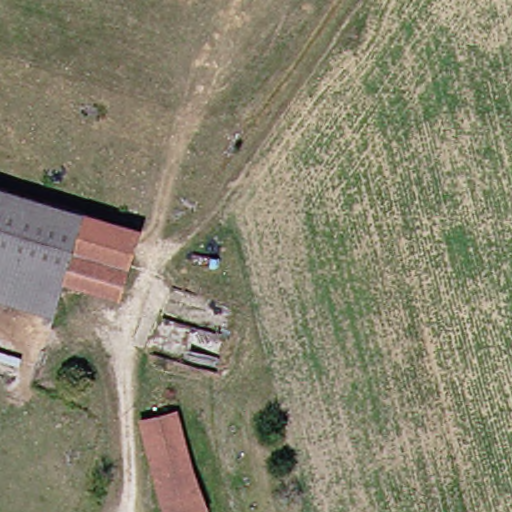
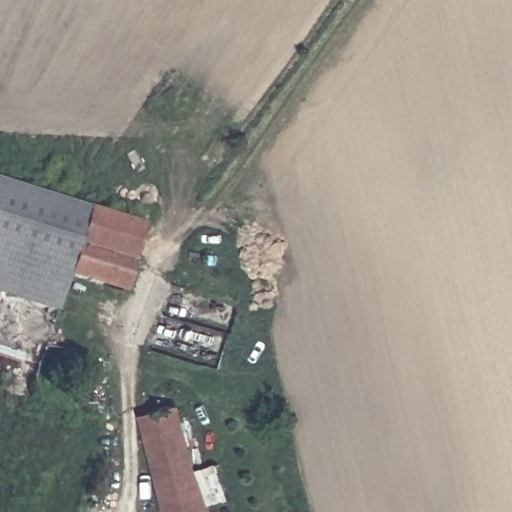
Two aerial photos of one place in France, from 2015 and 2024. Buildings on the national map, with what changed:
unchanged [(114,294),(59,280),(49,315),(0,300),(0,191),(132,231),(114,294)]
unchanged [(180,450),(194,492),(197,497),(200,512),(172,512),(172,511),(168,512),(160,512),(134,416),(169,407),(180,450)]

